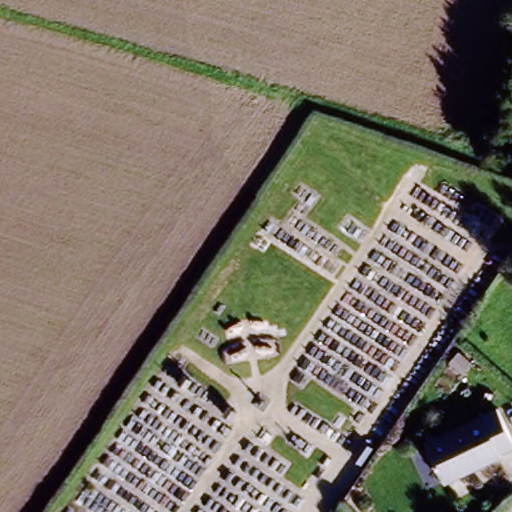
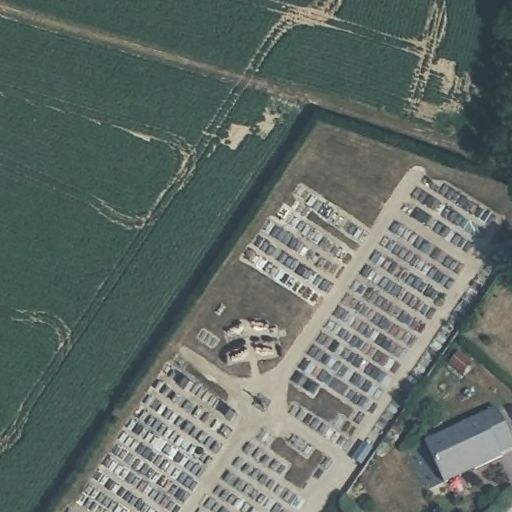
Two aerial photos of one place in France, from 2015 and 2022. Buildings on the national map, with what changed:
unchanged [(495,407),(512,446),(512,450),(443,482),(421,438),(495,407)]
unchanged [(339,443),(344,436),(351,441),(346,448),(339,443)]

